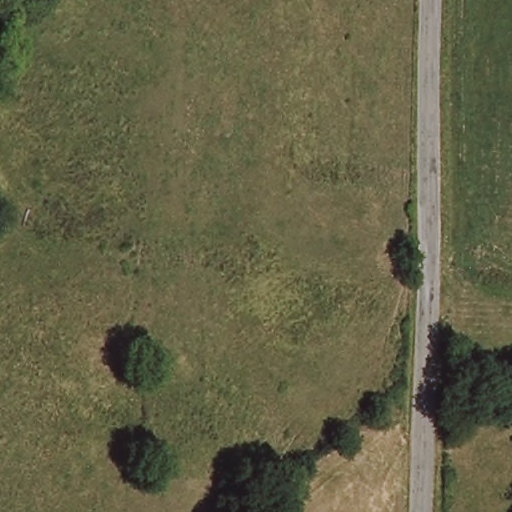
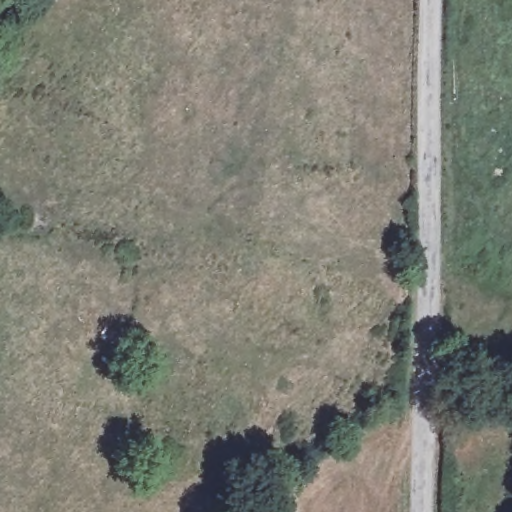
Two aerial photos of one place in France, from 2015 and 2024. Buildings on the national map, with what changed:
[]

